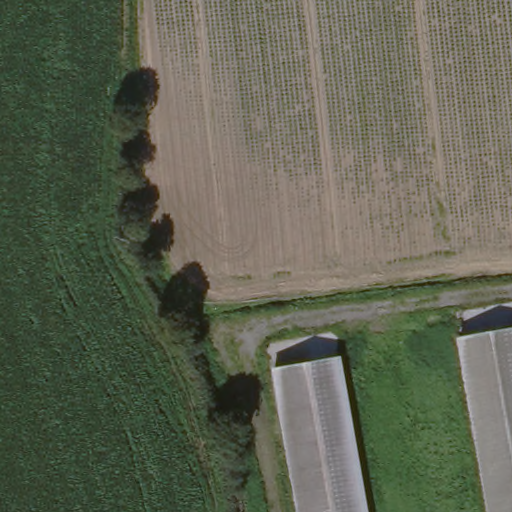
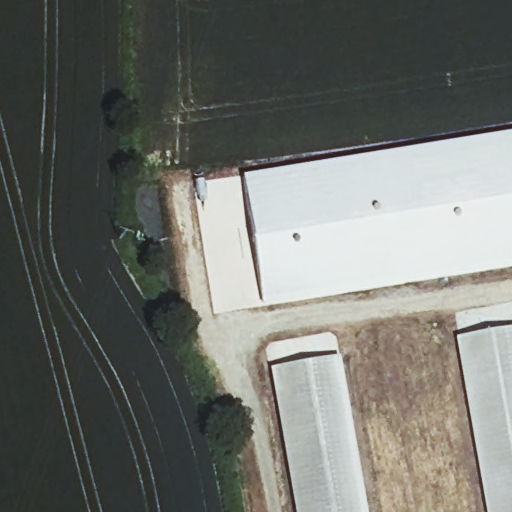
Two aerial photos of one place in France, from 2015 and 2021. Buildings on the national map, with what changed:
new [(263,307),(243,175),(512,132),(512,267),(263,307)]
unchanged [(485,512),(455,333),(512,324),(512,512),(485,512)]
unchanged [(340,356),(364,512),(302,512),(280,366),(340,356)]

